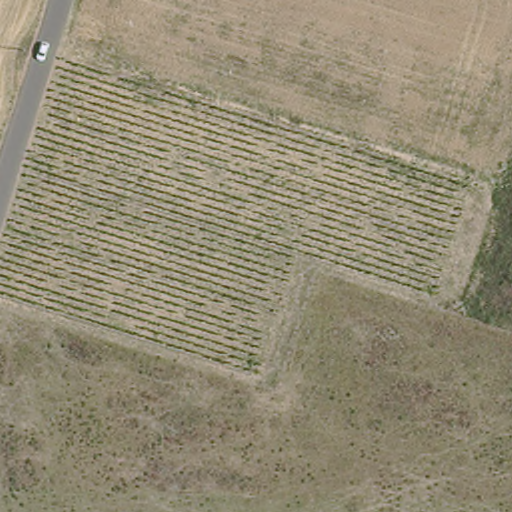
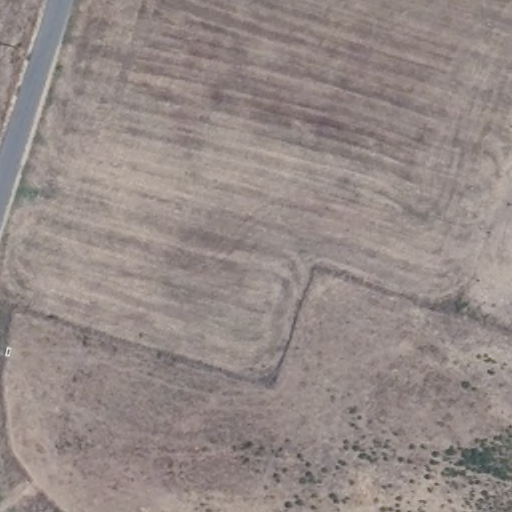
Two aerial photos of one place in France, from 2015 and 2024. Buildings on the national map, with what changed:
[]

